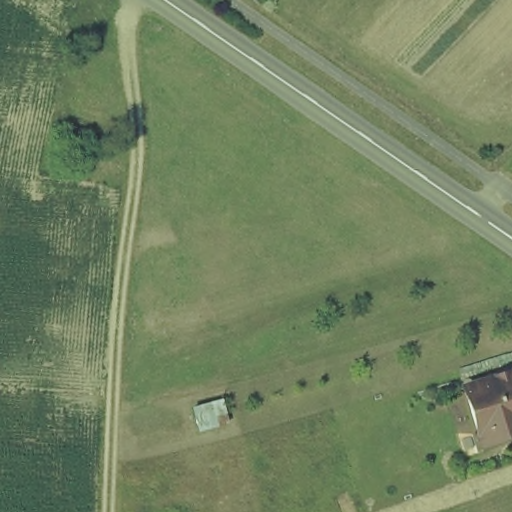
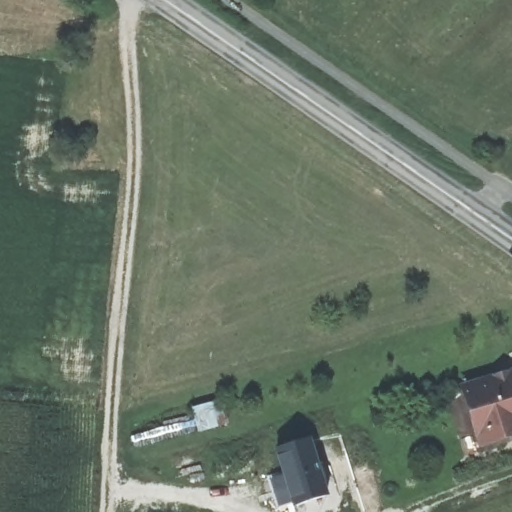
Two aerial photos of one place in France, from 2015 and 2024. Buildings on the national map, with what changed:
unchanged [(489,435),(466,430),(455,401),(483,385),(494,375),(512,369),(512,436),(492,442),(489,435)]
new [(313,440),(330,496),(293,506),(291,502),(277,507),(268,479),(281,475),(275,450),(313,440)]

